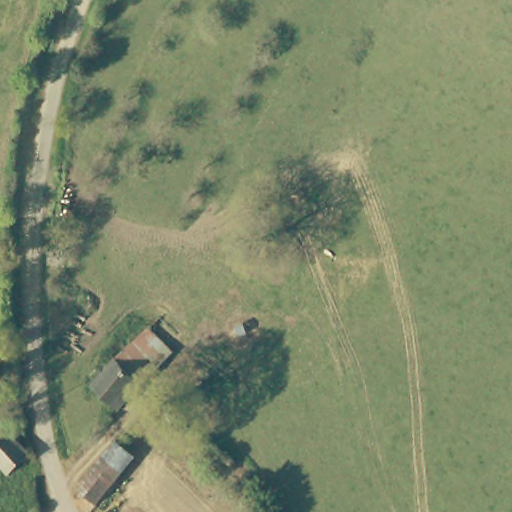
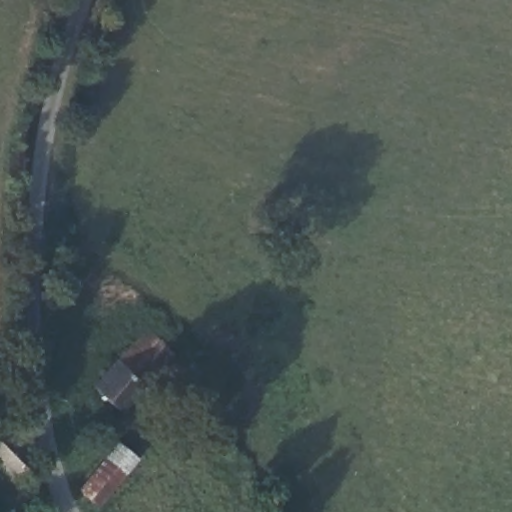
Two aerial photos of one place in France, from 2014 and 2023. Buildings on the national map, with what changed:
unchanged [(101,381),(126,355),(141,338),(169,362),(155,380),(131,405),(101,381)]
unchanged [(165,402),(170,400),(175,401),(179,405),(179,410),(177,415),(174,417),(168,417),(164,415),(161,409),(163,404),(165,402)]
unchanged [(16,473),(0,458),(0,430),(6,423),(35,451),(16,473)]
unchanged [(83,490),(110,459),(122,444),(141,461),(129,476),(102,506),(83,490)]

